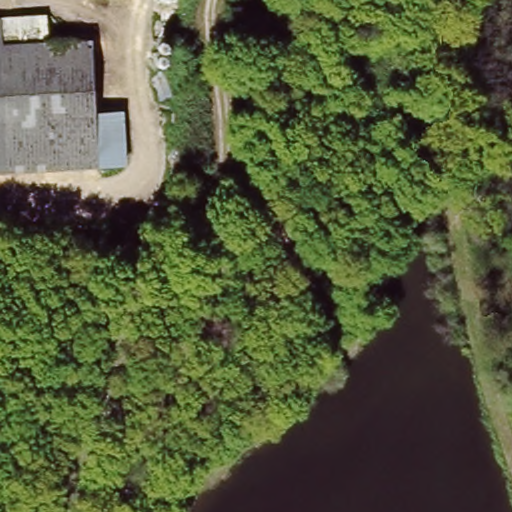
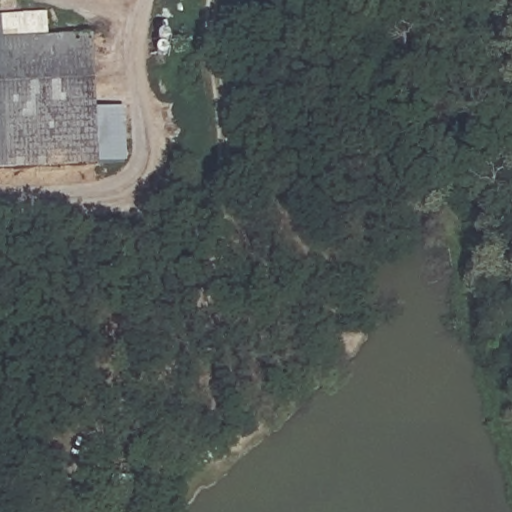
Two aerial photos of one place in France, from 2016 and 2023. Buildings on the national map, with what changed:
unchanged [(48,33),(97,34),(101,110),(125,111),(130,167),(0,172),(0,13),(45,14),(48,33)]
unchanged [(168,28),(168,54),(165,60),(162,61),(157,61),(155,59),(154,30),(155,24),(158,21),(162,20),(166,23),(168,28)]

